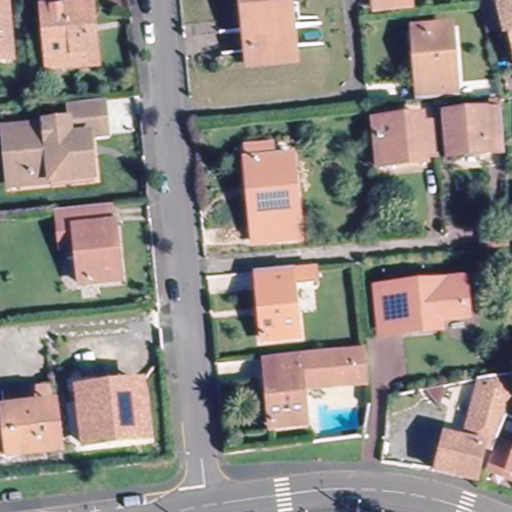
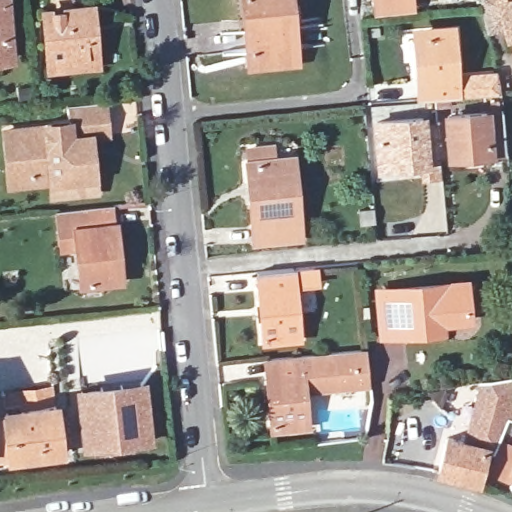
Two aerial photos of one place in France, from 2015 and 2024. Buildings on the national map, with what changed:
unchanged [(249,68),(248,53),(242,0),(286,0),(291,48),(293,63),(249,68)]
unchanged [(377,15),(376,2),(376,0),(410,0),(411,12),(377,15)]
unchanged [(504,0),(512,0),(512,36),(509,36),(504,0)]
unchanged [(51,76),(50,64),(45,7),(90,2),(95,59),(96,72),(51,76)]
unchanged [(5,58),(0,59),(0,10),(5,58)]
unchanged [(415,99),(410,32),(448,29),(453,95),(415,99)]
unchanged [(0,192),(0,188),(0,132),(53,125),(51,109),(97,104),(101,137),(82,139),(85,163),(74,165),(76,183),(66,184),(21,190),(0,192)]
unchanged [(480,147),(481,161),(441,163),(439,122),(494,118),(494,124),(496,146),(480,147)]
unchanged [(418,158),(419,166),(375,172),(369,126),(414,120),(415,129),(429,127),(433,156),(418,158)]
unchanged [(246,151),(273,148),(274,165),(297,163),(304,240),(255,245),(251,206),(249,187),(247,167),(246,151)]
unchanged [(57,261),(52,214),(110,208),(112,226),(120,225),(126,282),(78,287),(77,276),(59,278),(57,261)]
unchanged [(511,229),(511,230),(512,235),(512,241),(491,243),(489,231),(511,229)]
unchanged [(293,271),(300,339),(263,343),(256,275),(293,271)]
unchanged [(429,334),(385,339),(380,293),(463,284),(467,319),(443,321),(445,333),(429,334)]
unchanged [(368,356),(372,391),(305,397),(301,361),(368,356)]
unchanged [(305,397),(309,429),(272,433),(264,365),(301,361),(305,397)]
unchanged [(496,439),(487,437),(478,477),(438,468),(447,428),(467,432),(474,376),(512,370),(512,409),(505,410),(498,433),(496,439)]
unchanged [(146,378),(152,443),(81,451),(74,387),(146,378)]
unchanged [(52,391),(60,457),(53,458),(47,410),(4,415),(5,424),(0,425),(0,397),(52,391)]
unchanged [(0,465),(0,425),(5,424),(4,415),(47,410),(53,458),(0,465)]
unchanged [(512,471),(489,463),(496,439),(498,433),(512,438),(512,471)]

